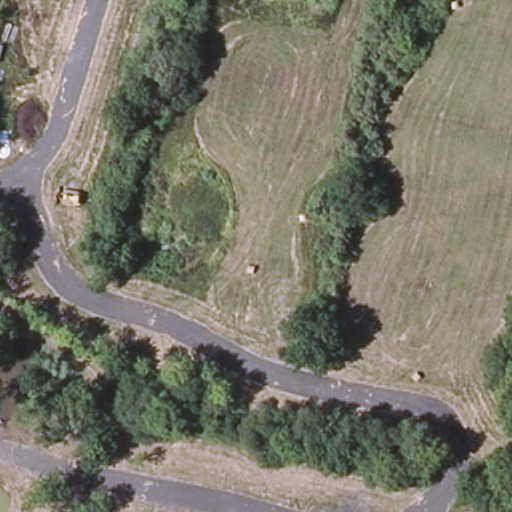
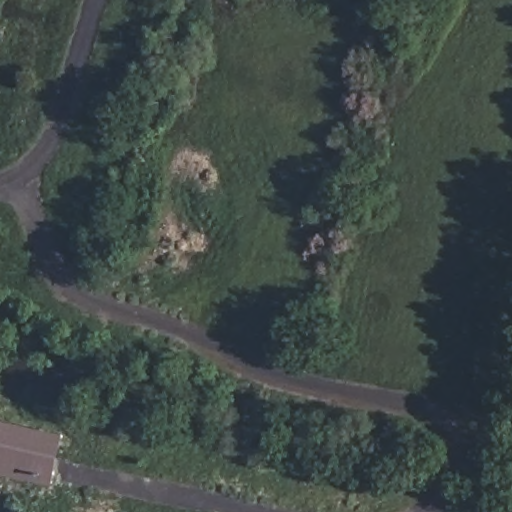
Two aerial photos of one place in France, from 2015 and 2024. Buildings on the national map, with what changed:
new [(68,435),(57,486),(0,473),(0,418),(68,435)]

